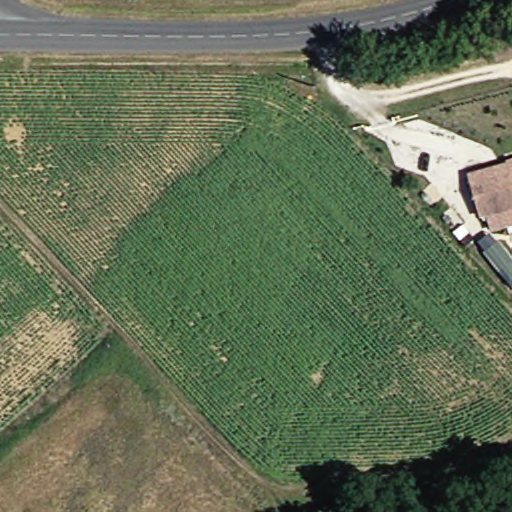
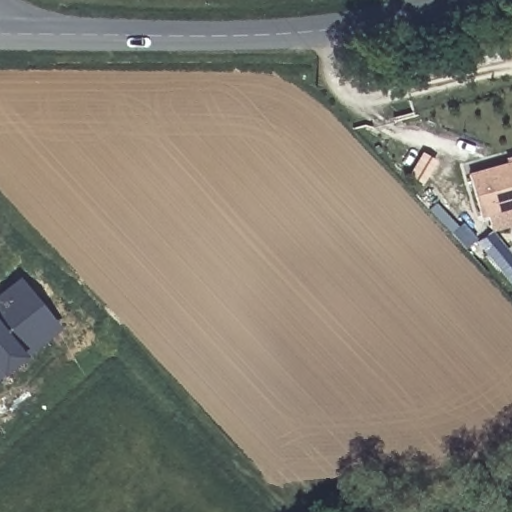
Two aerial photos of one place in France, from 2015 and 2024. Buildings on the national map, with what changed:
unchanged [(465,165),(512,151),(512,196),(484,204),(476,206),(465,165)]
unchanged [(512,196),(512,212),(488,219),(484,204),(512,196)]
new [(512,257),(512,280),(487,250),(498,240),(512,257)]
new [(0,376),(0,291),(19,277),(60,330),(0,376)]

